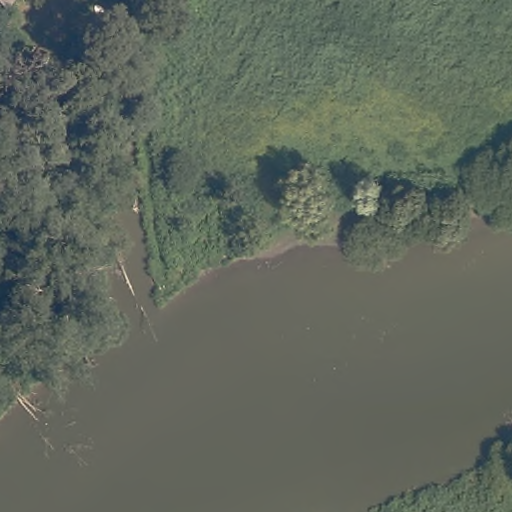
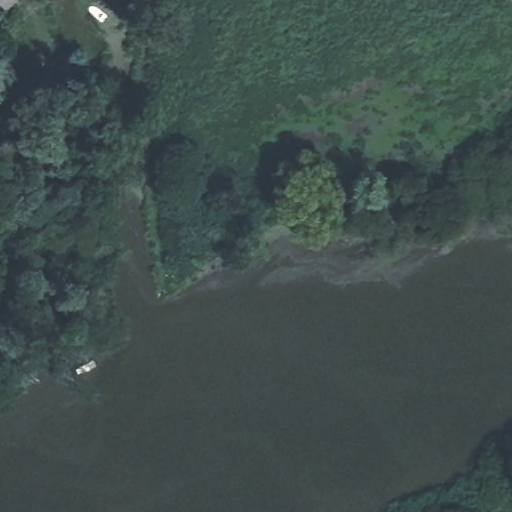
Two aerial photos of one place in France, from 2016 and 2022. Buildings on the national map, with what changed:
unchanged [(0,5),(0,0),(20,0),(7,12),(0,5)]
unchanged [(45,56),(39,63),(27,54),(35,46),(45,56)]
unchanged [(97,92),(86,100),(78,93),(92,85),(97,92)]

